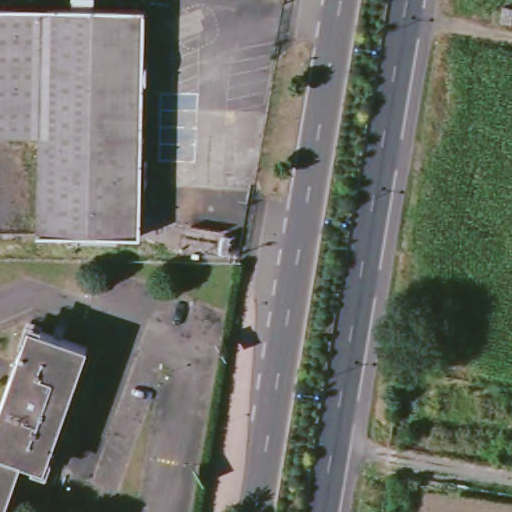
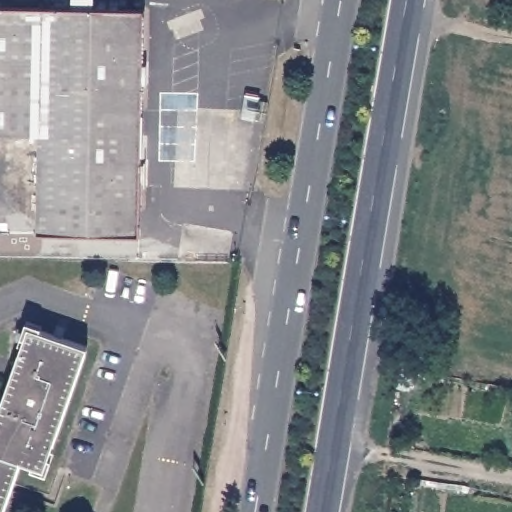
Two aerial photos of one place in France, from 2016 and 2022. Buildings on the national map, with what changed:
unchanged [(142,146),(141,237),(37,234),(39,134),(0,133),(0,7),(145,10),(144,78),(142,146)]
unchanged [(87,345),(44,467),(21,460),(2,512),(0,512),(0,406),(29,326),(87,345)]

